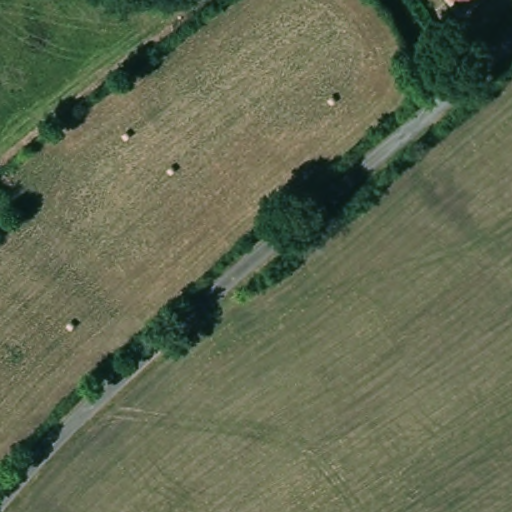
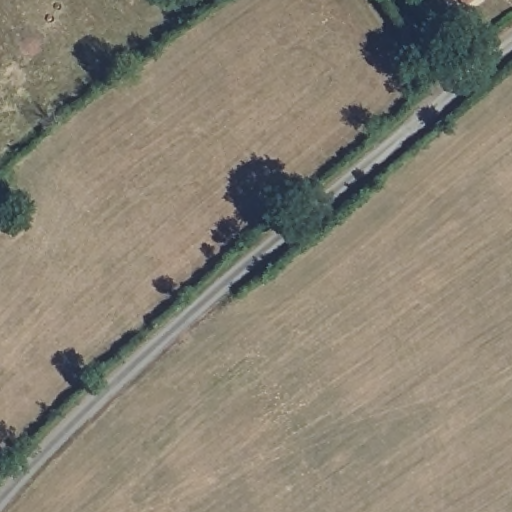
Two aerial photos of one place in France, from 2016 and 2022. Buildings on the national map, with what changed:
unchanged [(461,11),(453,0),(476,0),(461,11)]

